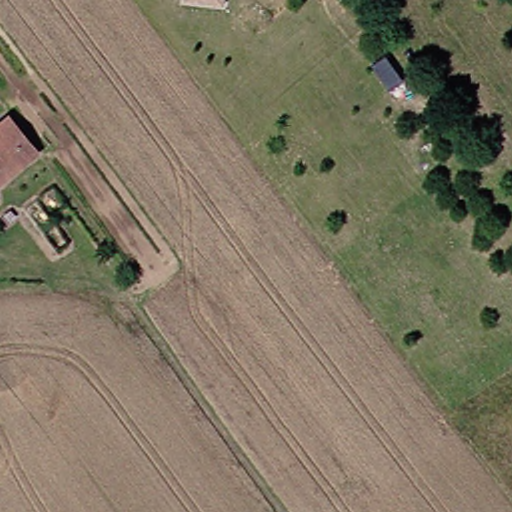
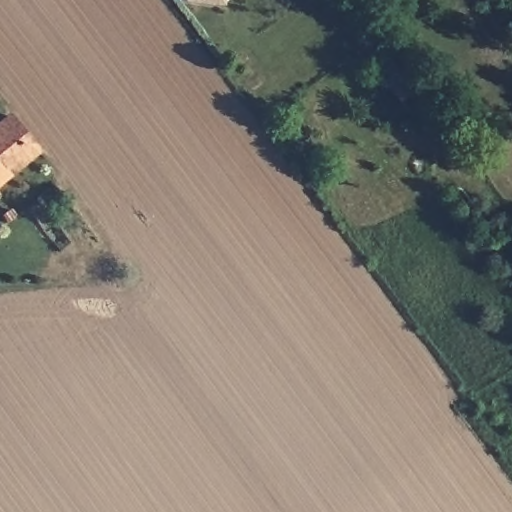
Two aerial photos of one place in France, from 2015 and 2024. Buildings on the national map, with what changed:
unchanged [(184,0),(223,0),(222,6),(184,0)]
unchanged [(41,151),(0,184),(0,128),(14,117),(41,151)]

